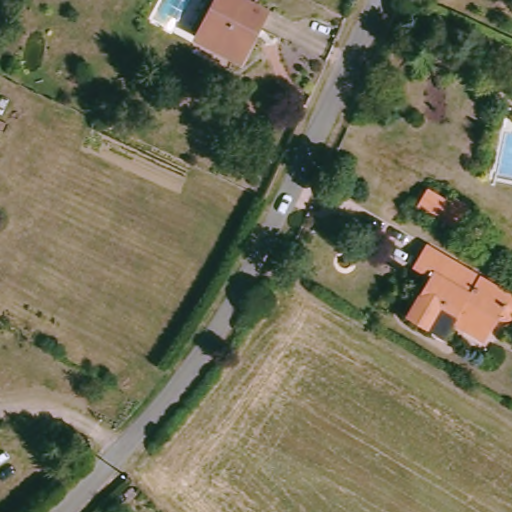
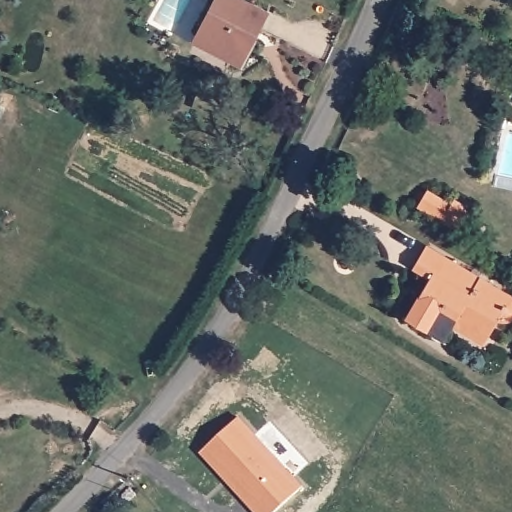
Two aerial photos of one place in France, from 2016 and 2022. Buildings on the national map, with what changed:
new [(162,0),(190,0),(172,32),(151,20),(162,0)]
unchanged [(217,0),(242,0),(268,15),(259,31),(256,31),(237,62),(196,38),(217,0)]
unchanged [(431,191),(453,204),(456,200),(473,210),(462,227),(446,217),(443,221),(419,207),(431,191)]
unchanged [(446,328),(438,339),(402,317),(424,278),(409,269),(422,248),(442,260),(506,298),(510,304),(511,312),(508,315),(503,318),(493,319),(483,336),(476,346),(446,328)]
new [(241,416),(306,485),(276,512),(259,512),(203,453),(241,416)]

